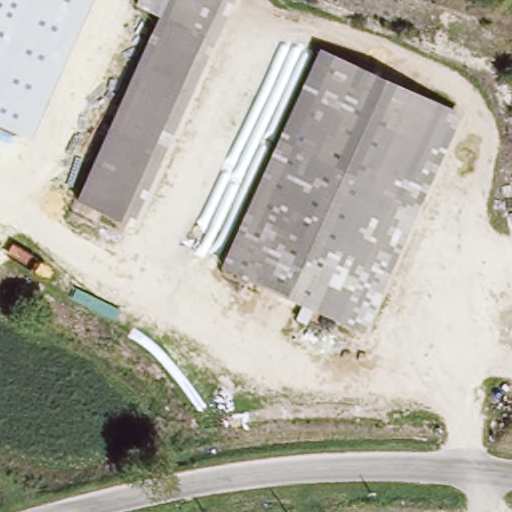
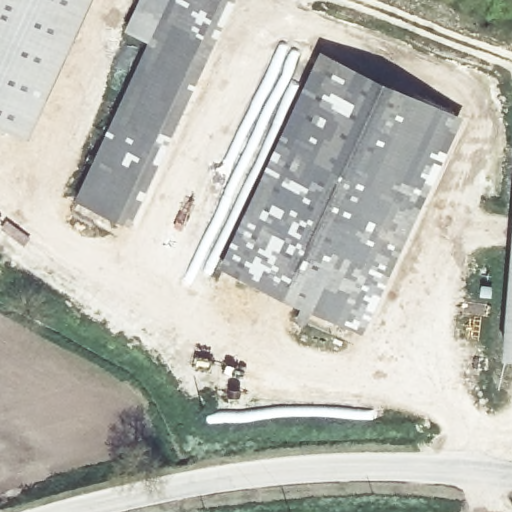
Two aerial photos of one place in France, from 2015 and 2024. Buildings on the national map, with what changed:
unchanged [(0,124),(0,0),(94,0),(31,137),(0,124)]
unchanged [(149,0),(180,0),(174,12),(149,0)]
unchanged [(234,0),(215,35),(174,12),(180,0),(234,0)]
unchanged [(121,210),(79,187),(87,173),(172,15),(174,12),(215,35),(129,199),(121,210)]
unchanged [(338,51),(463,119),(363,310),(355,326),(230,259),(237,245),(338,51)]
new [(512,358),(503,357),(512,244),(512,358)]

